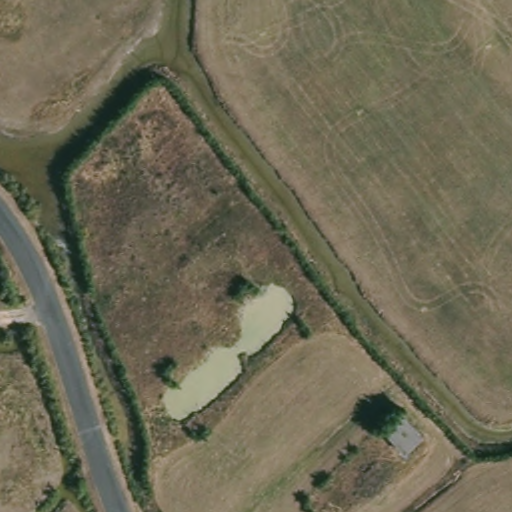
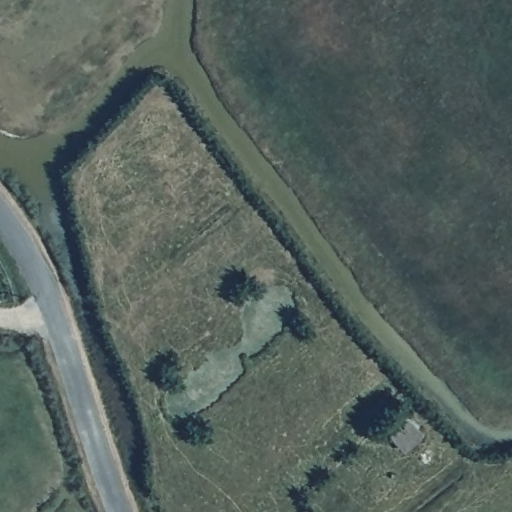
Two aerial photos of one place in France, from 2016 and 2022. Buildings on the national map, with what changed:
unchanged [(408,458),(386,432),(405,414),(427,439),(408,458)]

